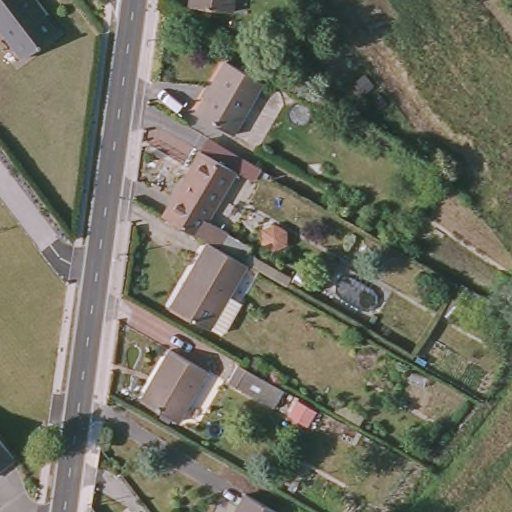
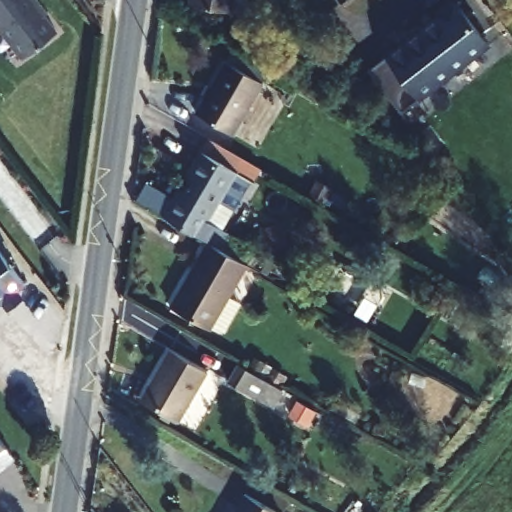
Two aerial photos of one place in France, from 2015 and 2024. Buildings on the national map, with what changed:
unchanged [(31,0),(57,34),(23,59),(0,30),(0,0),(31,0)]
unchanged [(190,6),(190,0),(233,0),(231,13),(190,6)]
new [(368,70),(437,17),(438,9),(449,2),(456,3),(489,45),(401,113),(368,70)]
unchanged [(246,72),(248,67),(266,77),(263,82),(233,134),(196,113),(226,60),(246,72)]
unchanged [(209,243),(163,217),(201,151),(235,171),(207,221),(227,233),(253,248),(244,263),(219,248),(209,243)]
new [(218,200),(234,209),(222,229),(207,221),(218,200)]
unchanged [(224,333),(212,325),(209,329),(171,308),(209,243),(219,248),(247,264),(228,295),(241,303),(224,333)]
unchanged [(2,302),(0,303),(0,252),(25,284),(17,290),(22,298),(15,303),(8,309),(2,302)]
unchanged [(170,351),(206,372),(178,422),(141,401),(170,351)]
unchanged [(283,390),(273,408),(229,383),(239,365),(283,390)]
unchanged [(17,459),(0,471),(0,437),(17,459)]
unchanged [(245,494),(276,512),(234,512),(245,494)]

